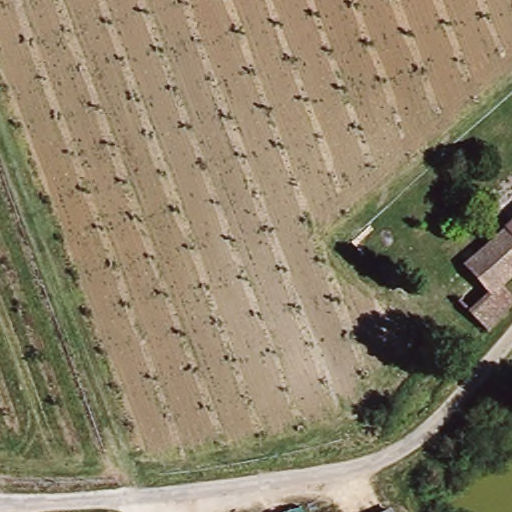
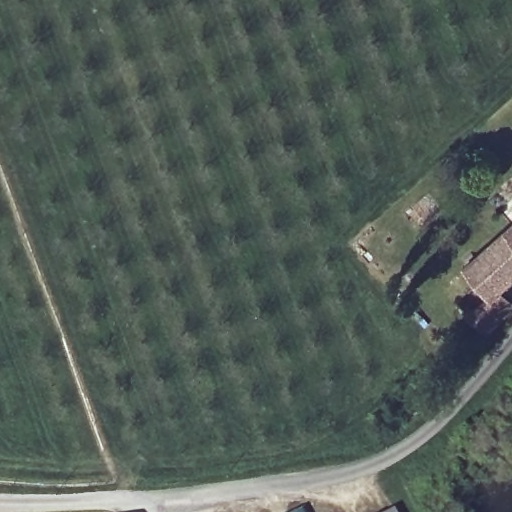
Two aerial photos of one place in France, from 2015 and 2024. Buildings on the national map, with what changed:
unchanged [(487,288),(469,271),(512,225),(512,283),(504,291),(512,298),(512,311),(492,335),(466,312),(487,288)]
unchanged [(299,510),(300,512),(296,512),(299,510)]

